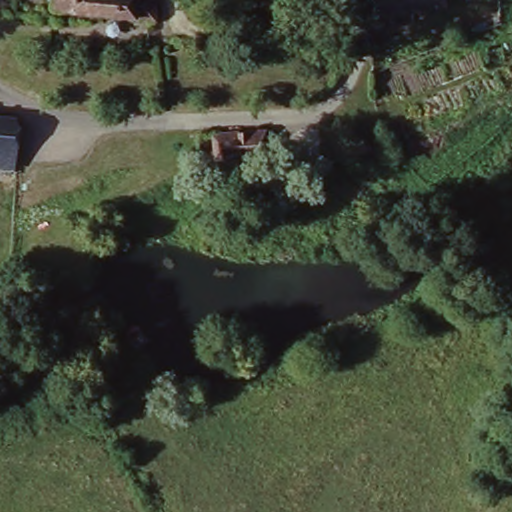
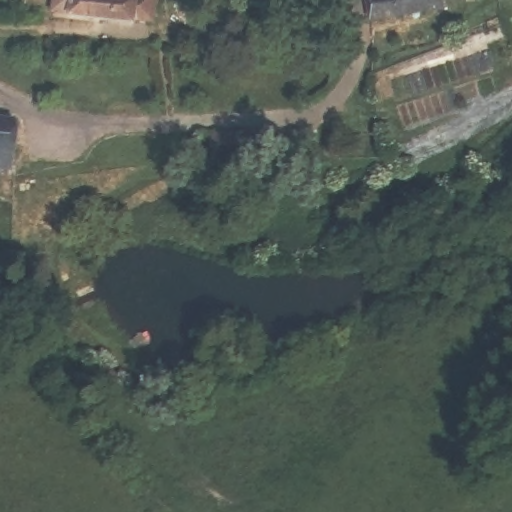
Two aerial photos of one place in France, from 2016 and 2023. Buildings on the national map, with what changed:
unchanged [(48,16),(49,0),(156,0),(155,22),(48,16)]
unchanged [(358,16),(357,0),(439,0),(440,9),(358,16)]
unchanged [(5,177),(0,177),(0,119),(13,120),(5,177)]
unchanged [(270,129),(273,156),(209,164),(206,137),(270,129)]

